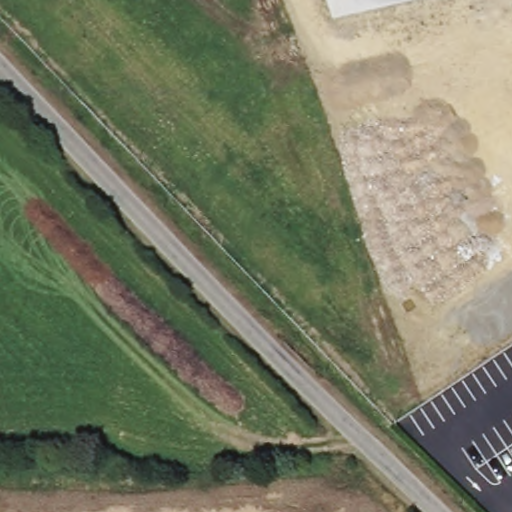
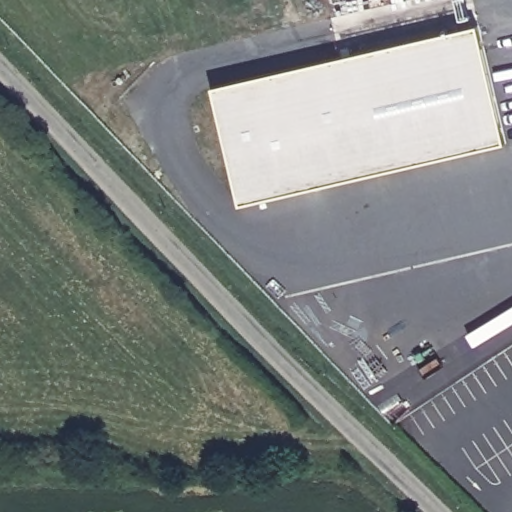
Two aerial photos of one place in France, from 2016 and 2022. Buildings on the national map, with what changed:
new [(507,144),(241,206),(213,87),(479,26),(507,144)]

